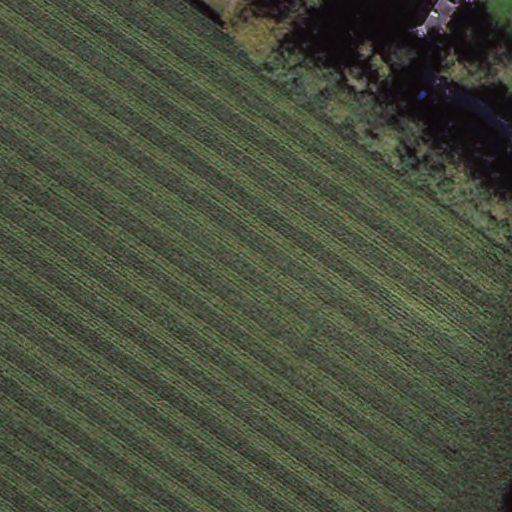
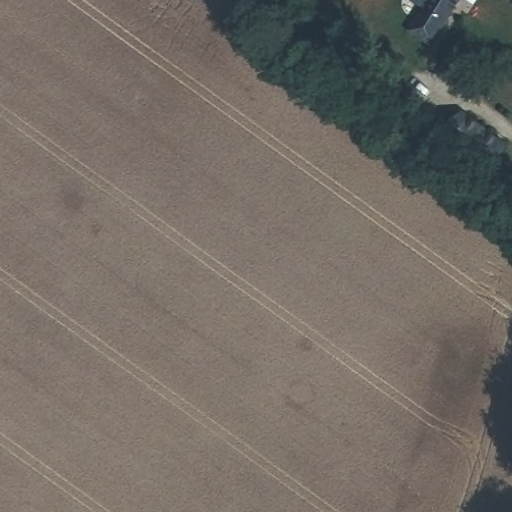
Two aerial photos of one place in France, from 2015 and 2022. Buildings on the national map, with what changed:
unchanged [(404,26),(421,0),(453,0),(428,42),(404,26)]
unchanged [(496,171),(441,121),(456,103),(512,154),(496,171)]

